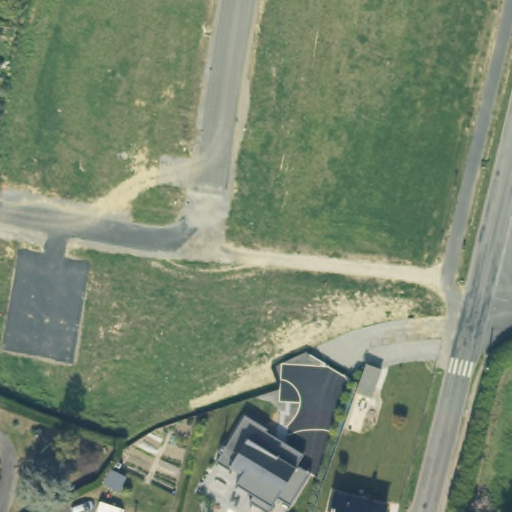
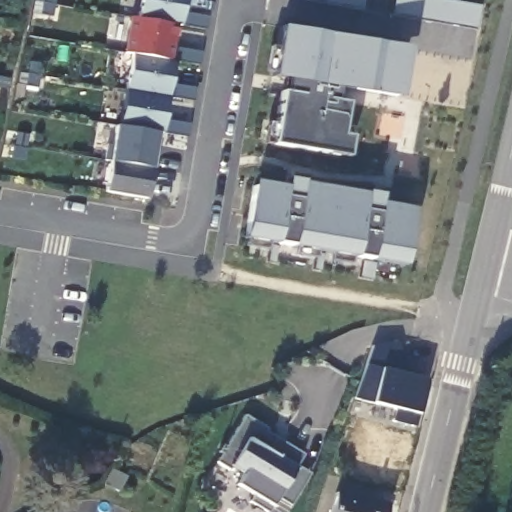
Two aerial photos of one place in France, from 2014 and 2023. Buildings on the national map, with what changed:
new [(131,54),(123,53),(128,17),(137,19),(140,0),(187,0),(182,25),(177,25),(171,62),(175,62),(161,132),(119,126),(131,54)]
new [(308,0),(366,0),(365,9),(308,0)]
new [(393,17),(396,0),(446,0),(483,6),(478,31),(393,17)]
new [(274,145),(284,80),(271,77),(280,26),(408,48),(399,100),(337,88),(335,101),(346,103),(340,135),(350,137),(346,157),(274,145)]
new [(146,199),(104,193),(109,163),(152,170),(146,199)]
new [(403,267),(369,260),(292,246),(275,243),(275,244),(244,239),(253,180),(284,186),(285,178),(303,180),(303,182),(365,193),(365,191),(382,194),(380,203),(413,208),(403,267)]
unchanged [(379,367),(368,394),(354,389),(364,362),(379,367)]
unchanged [(289,502),(276,494),(267,510),(248,498),(251,492),(234,481),(241,470),(229,464),(227,467),(214,459),(219,450),(217,449),(221,442),(224,443),(243,411),(266,426),(265,428),(275,434),(267,448),(276,453),(284,440),(303,451),(296,462),(309,470),(289,502)]
unchanged [(385,512),(332,512),(337,492),(386,505),(385,512)]

